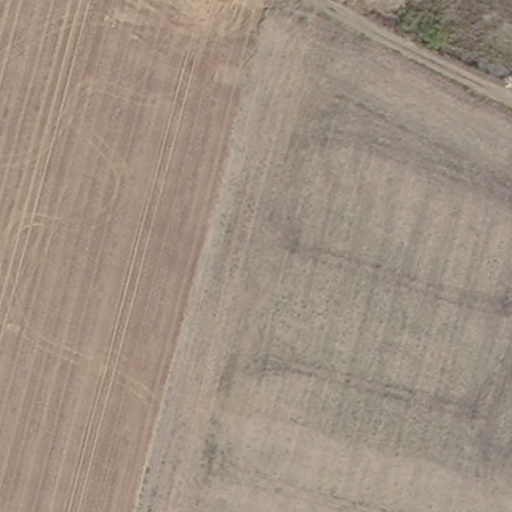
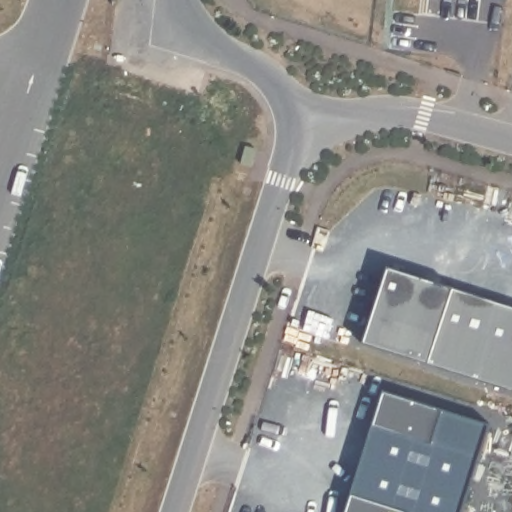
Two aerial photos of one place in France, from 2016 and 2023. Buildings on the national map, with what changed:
new [(384,270),(447,289),(449,280),(512,298),(512,381),(360,337),(384,270)]
new [(468,512),(350,512),(386,393),(493,428),(468,512)]

